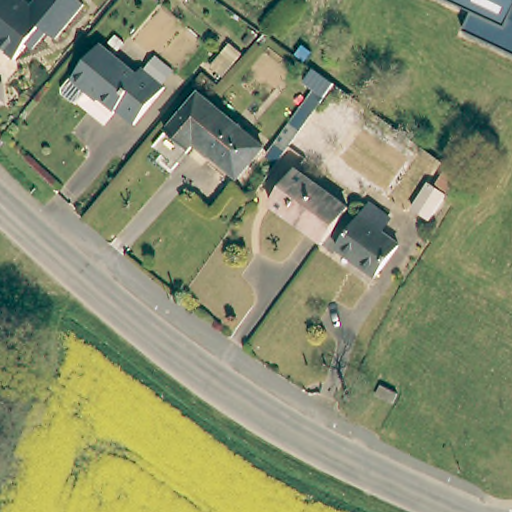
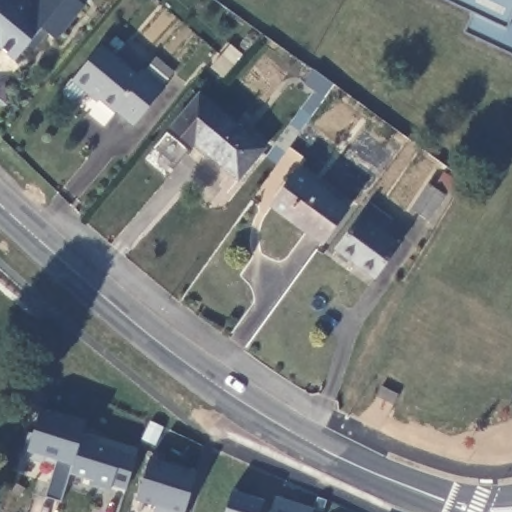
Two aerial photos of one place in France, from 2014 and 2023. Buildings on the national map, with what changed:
unchanged [(42,44),(36,40),(25,54),(9,40),(0,50),(0,0),(28,0),(27,1),(39,11),(48,0),(93,0),(94,1),(65,35),(56,27),(42,44)]
unchanged [(476,33),(485,14),(454,0),(512,0),(512,48),(476,33)]
unchanged [(89,95),(78,94),(66,84),(96,47),(131,75),(135,70),(139,73),(150,60),(170,77),(159,90),(129,127),(89,95)]
unchanged [(325,100),(315,91),(326,76),(337,86),(325,100)]
unchanged [(192,135),(177,152),(160,137),(199,92),(260,146),(235,172),(192,135)]
unchanged [(277,158),(270,152),(302,109),(312,118),(277,158)]
unchanged [(300,171),(351,211),(323,246),(271,204),(300,171)]
unchanged [(428,216),(441,199),(448,191),(460,201),(454,209),(440,227),(428,216)]
unchanged [(334,256),(368,212),(387,227),(378,238),(395,252),(370,284),(334,256)]
new [(126,490),(112,485),(110,492),(94,487),(95,482),(70,474),(60,501),(45,497),(56,465),(45,461),(42,464),(21,457),(28,451),(41,411),(85,423),(81,437),(122,451),(136,456),(126,490)]
new [(197,474),(185,512),(167,512),(168,510),(137,500),(150,460),(197,474)]
new [(232,492),(265,502),(261,512),(226,512),(232,492)]
new [(312,512),(271,512),(276,497),(313,509),(312,512)]

